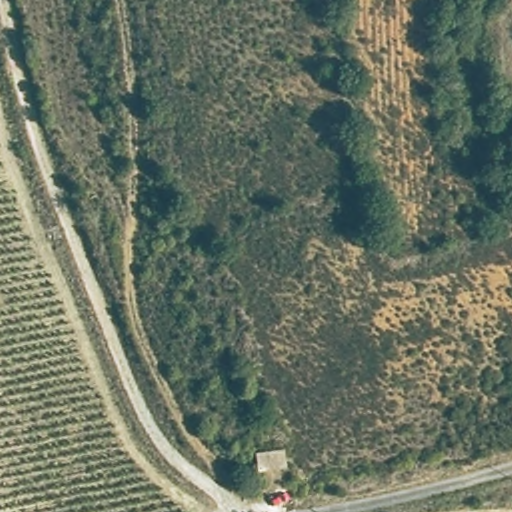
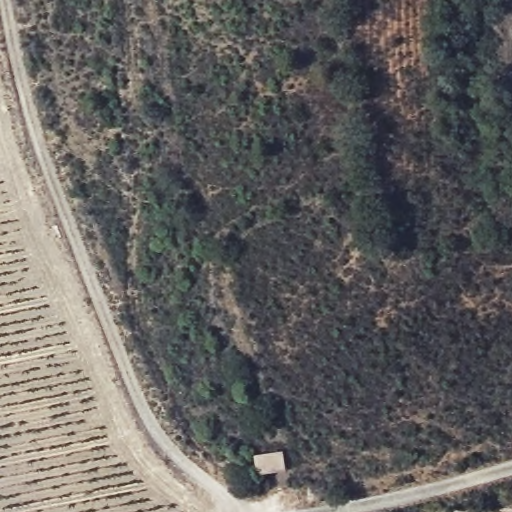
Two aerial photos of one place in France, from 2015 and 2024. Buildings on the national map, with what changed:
unchanged [(257,469),(255,449),(280,446),(282,463),(257,469)]

